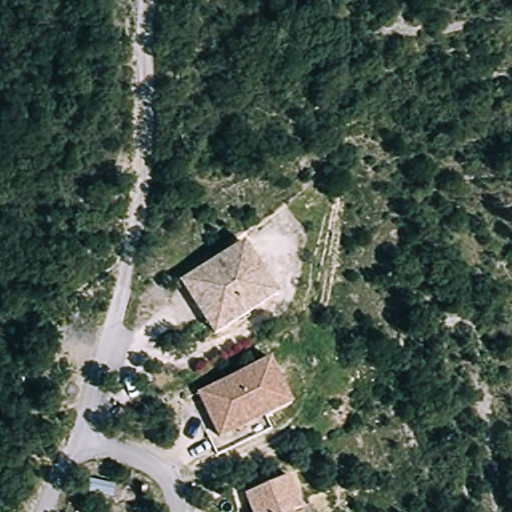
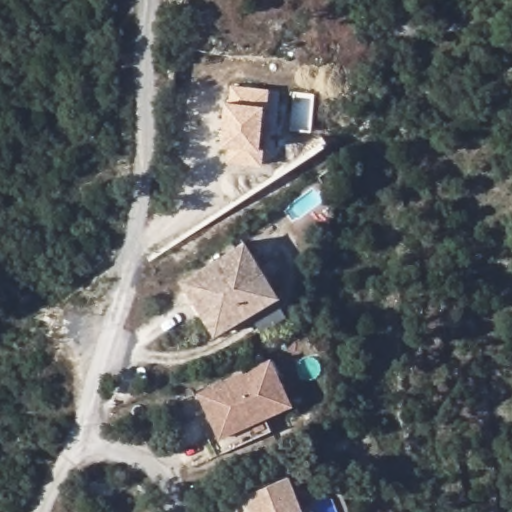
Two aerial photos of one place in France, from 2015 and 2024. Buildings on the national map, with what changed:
new [(219,146),(224,100),(228,100),(230,85),(269,89),(260,166),(225,162),(225,146),(219,146)]
unchanged [(192,300),(180,278),(247,241),(269,283),(276,297),(247,314),(223,325),(209,333),(192,300)]
unchanged [(201,393),(273,368),(291,416),(217,441),(201,393)]
unchanged [(295,474),(309,507),(298,511),(298,512),(258,512),(249,491),(295,474)]
unchanged [(311,512),(298,512),(298,511),(309,507),(311,512)]

